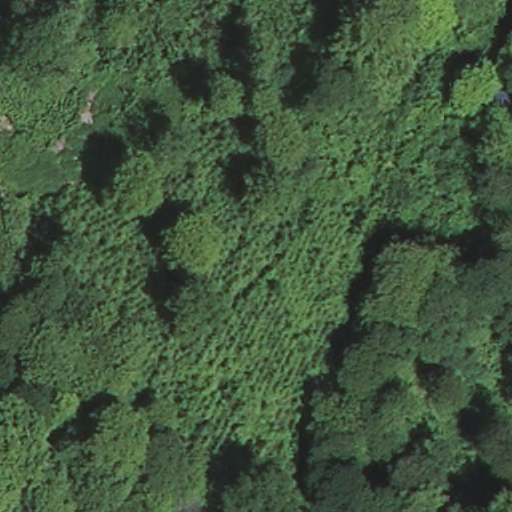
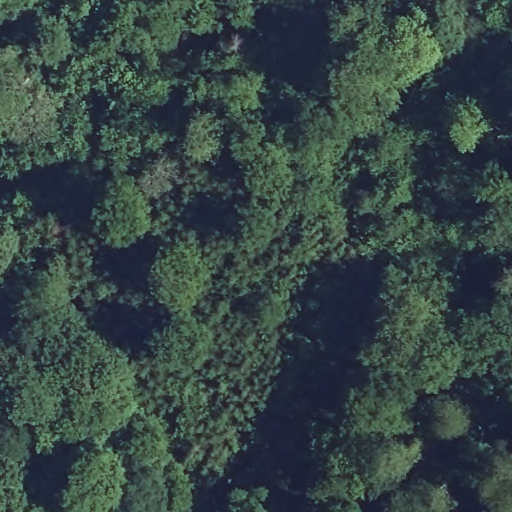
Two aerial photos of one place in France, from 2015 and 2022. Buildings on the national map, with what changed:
unchanged [(482,95),(500,94),(496,119),(471,115),(470,95),(482,95)]

